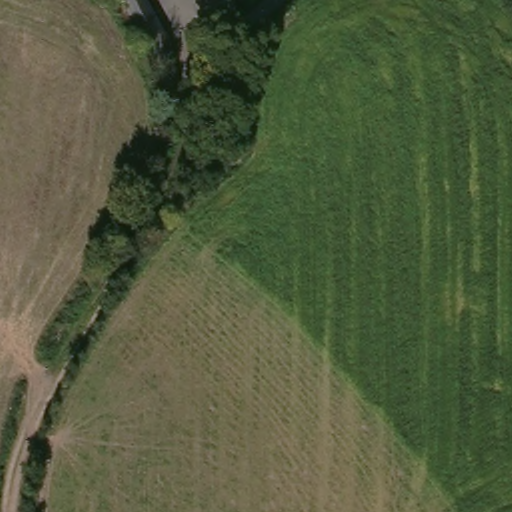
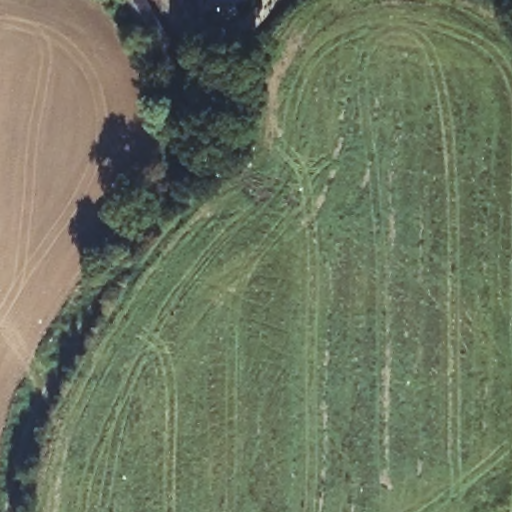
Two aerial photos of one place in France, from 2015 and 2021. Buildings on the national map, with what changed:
unchanged [(241,19),(218,19),(216,0),(251,0),(252,4),(241,19)]

